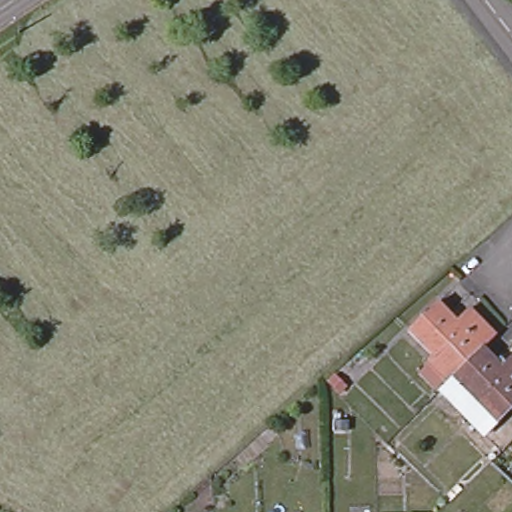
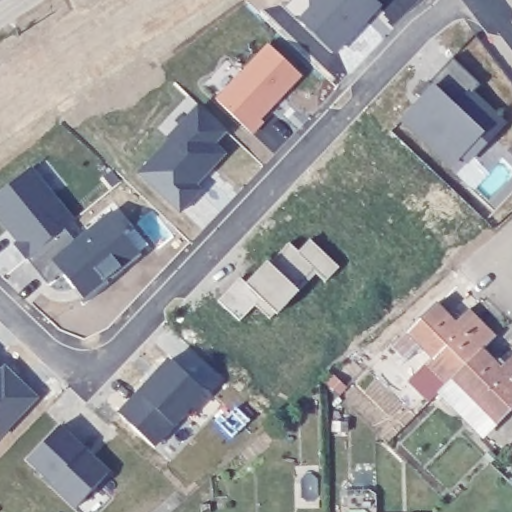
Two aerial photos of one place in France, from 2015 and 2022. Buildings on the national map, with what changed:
new [(311,0),(379,0),(380,1),(372,9),(370,6),(362,14),(365,17),(338,46),(332,46),(300,17),(311,5),(311,0)]
new [(270,42),(301,71),(260,115),(264,118),(252,130),(217,97),(270,42)]
new [(415,103),(422,109),(430,101),(417,90),(429,78),(430,79),(452,55),(479,79),(470,88),(504,119),(482,142),(475,135),(462,150),(447,136),(437,146),(404,116),(415,103)]
new [(227,131),(216,144),(227,154),(199,185),(202,190),(180,212),(139,173),(200,103),(227,131)]
new [(74,217),(65,225),(27,255),(15,241),(21,236),(2,213),(0,214),(0,191),(31,165),(74,217)]
new [(65,225),(75,238),(112,208),(129,228),(122,234),(135,251),(105,275),(107,279),(82,299),(85,296),(64,268),(48,280),(27,255),(65,225)]
new [(241,274),(247,280),(261,266),(265,269),(271,262),(270,261),(290,239),(300,248),(311,236),(340,263),(326,278),(317,270),(279,311),(277,309),(255,332),(219,297),(241,274)]
unchanged [(454,404),(439,388),(447,380),(427,360),(432,354),(407,329),(436,301),(455,320),(469,306),(495,333),(482,346),(500,364),(512,353),(512,408),(484,435),(454,404)]
new [(210,396),(157,446),(120,412),(167,359),(210,396)]
new [(5,366),(39,398),(0,438),(0,367),(2,369),(5,366)]
new [(82,447),(109,470),(77,505),(51,482),(55,479),(30,458),(60,426),(82,447)]

